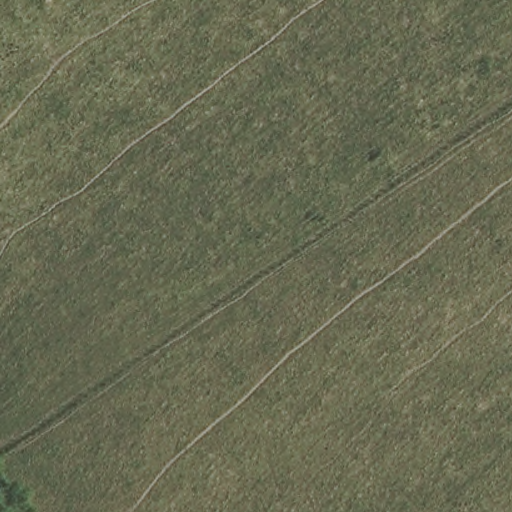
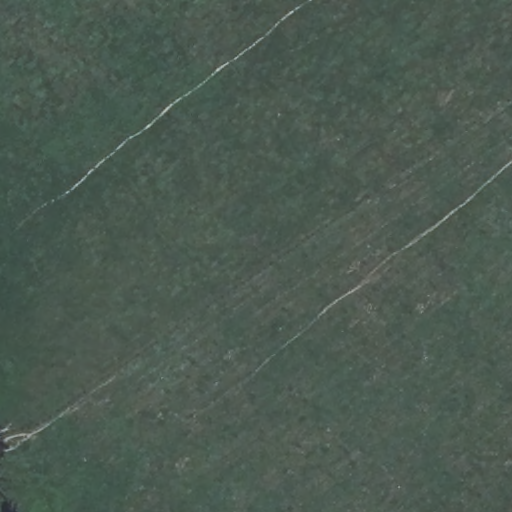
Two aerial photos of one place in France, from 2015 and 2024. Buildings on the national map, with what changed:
[]

